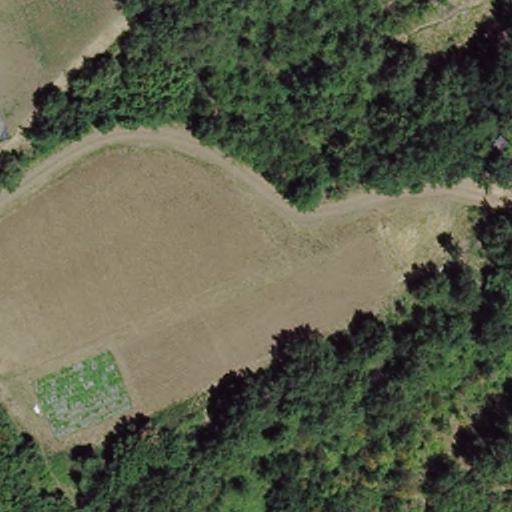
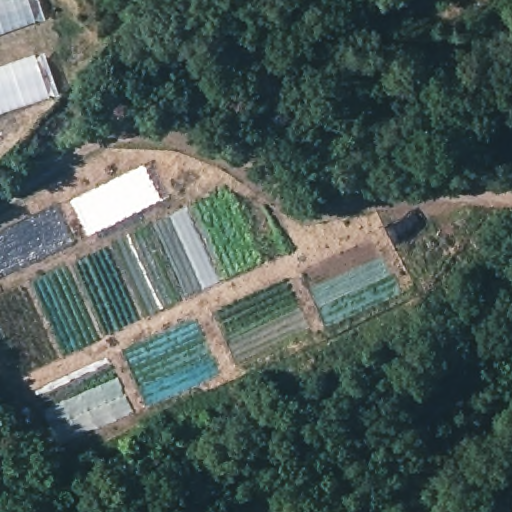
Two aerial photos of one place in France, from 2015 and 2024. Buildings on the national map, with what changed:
new [(0,34),(0,0),(38,0),(45,19),(0,34)]
new [(49,92),(0,110),(0,66),(33,55),(49,92)]

